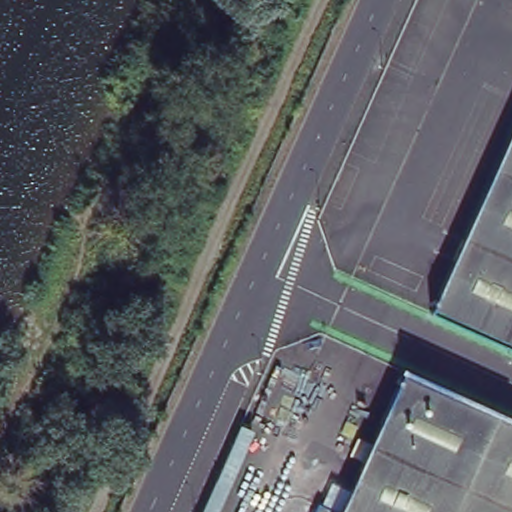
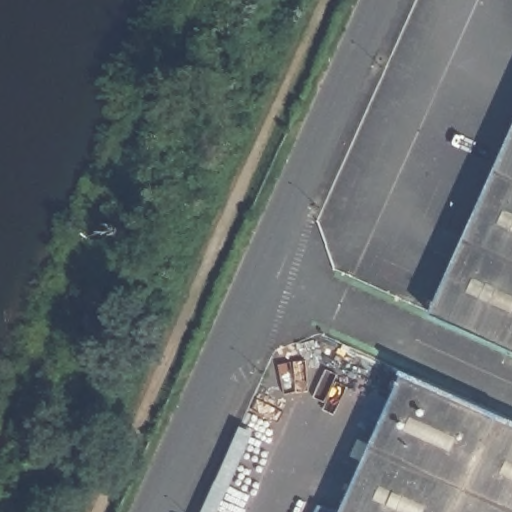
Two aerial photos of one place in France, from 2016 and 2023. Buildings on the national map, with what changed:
unchanged [(512,126),(512,348),(429,311),(512,126)]
unchanged [(512,512),(343,512),(400,370),(512,421),(512,512)]

